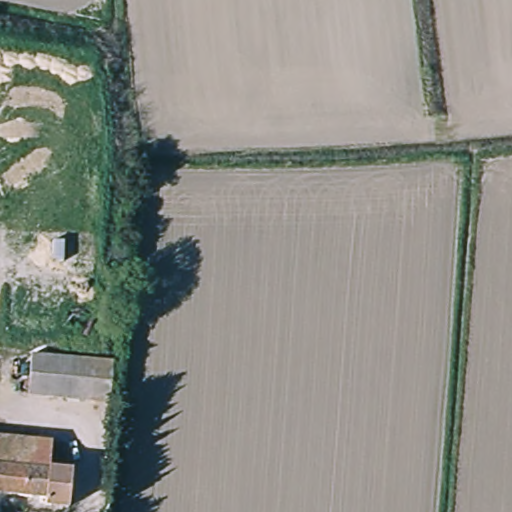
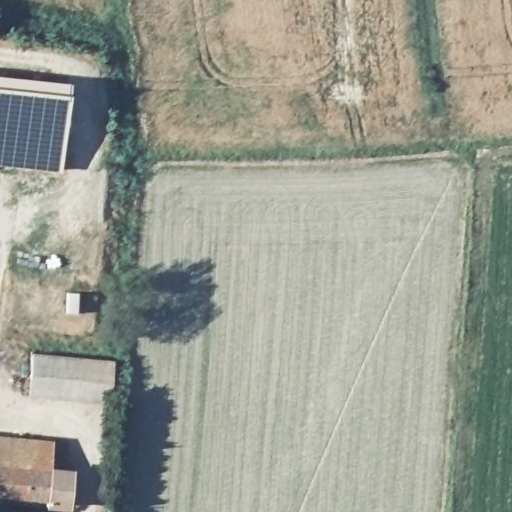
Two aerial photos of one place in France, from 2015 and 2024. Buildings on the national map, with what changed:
new [(0,164),(0,73),(70,81),(69,92),(60,170),(0,164)]
unchanged [(115,361),(111,404),(30,397),(33,354),(115,361)]
unchanged [(34,488),(15,485),(0,483),(0,435),(38,438),(37,454),(36,459),(57,461),(54,488),(34,488)]

